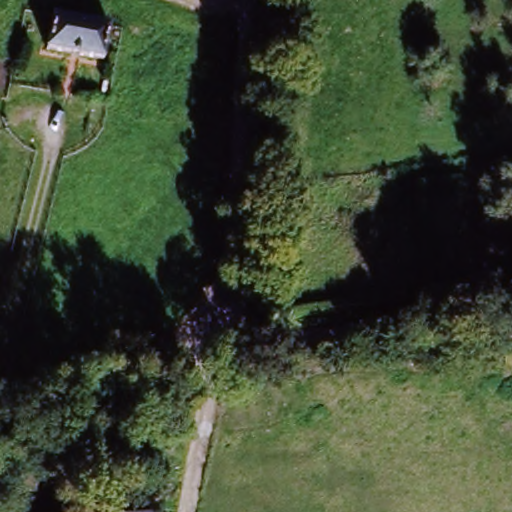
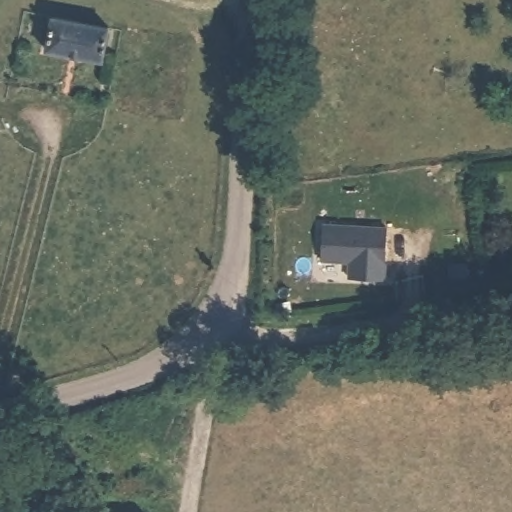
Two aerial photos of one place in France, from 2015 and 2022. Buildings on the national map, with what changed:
unchanged [(100,66),(42,55),(49,23),(106,35),(100,66)]
new [(388,226),(387,281),(348,278),(349,263),(321,262),(323,222),(388,226)]

